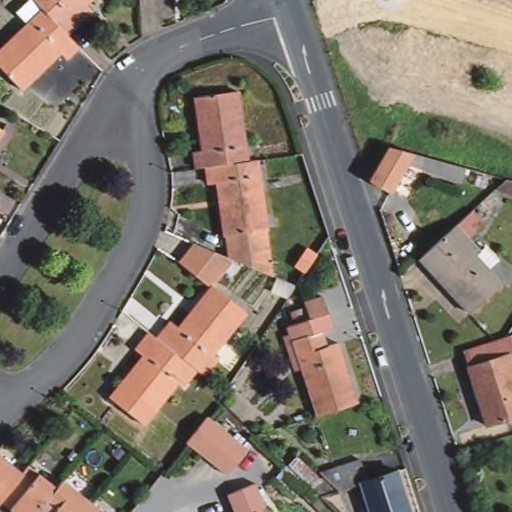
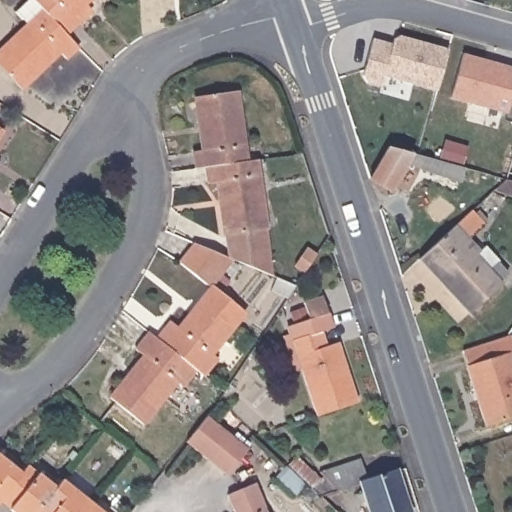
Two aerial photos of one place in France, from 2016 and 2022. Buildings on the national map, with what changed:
unchanged [(28,0),(35,0),(65,34),(76,47),(65,58),(59,52),(21,88),(0,66),(0,50),(29,23),(17,10),(28,0)]
unchanged [(72,16),(78,22),(65,34),(35,0),(89,0),(72,16)]
new [(385,74),(382,86),(366,83),(362,76),(373,39),(392,43),(393,39),(399,36),(447,48),(437,90),(385,74)]
new [(451,98),(463,54),(512,67),(512,91),(506,113),(451,98)]
unchanged [(195,147),(204,146),(199,92),(239,88),(248,158),(226,161),(206,163),(200,164),(198,164),(195,147)]
unchanged [(0,134),(0,126),(4,128),(0,134)]
unchanged [(441,163),(462,169),(458,183),(405,164),(388,192),(366,179),(386,148),(441,163)]
unchanged [(209,179),(206,163),(226,161),(248,158),(252,157),(258,157),(272,274),(229,255),(219,178),(209,179)]
unchanged [(512,181),(512,195),(496,191),(508,180),(512,181)]
unchanged [(477,215),(482,212),(488,219),(484,224),(486,225),(470,240),(480,252),(476,255),(502,284),(470,315),(420,261),(473,212),(477,215)]
unchanged [(224,262),(210,284),(177,263),(195,241),(224,262)]
unchanged [(175,326),(205,290),(210,284),(218,291),(241,311),(207,352),(214,358),(200,374),(192,367),(191,367),(155,337),(168,321),(175,326)]
unchanged [(305,318),(301,302),(320,295),(331,328),(319,331),(323,346),(335,342),(356,401),(315,414),(300,374),(298,367),(292,369),(281,337),(288,335),(285,325),(305,318)]
unchanged [(178,384),(174,380),(139,422),(106,395),(140,354),(132,347),(146,330),(155,337),(191,367),(192,367),(178,384)]
unchanged [(468,367),(463,351),(505,338),(512,336),(512,354),(510,355),(512,363),(512,417),(485,424),(467,367),(468,367)]
unchanged [(198,429),(206,418),(247,450),(228,476),(187,443),(198,429)]
unchanged [(312,488),(324,476),(320,472),(363,459),(369,479),(398,470),(412,512),(372,512),(363,485),(320,495),(312,488)]
unchanged [(0,500),(0,462),(18,476),(0,500)]
unchanged [(53,491),(37,512),(7,512),(0,506),(0,500),(18,476),(24,468),(53,491)]
unchanged [(255,483),(268,512),(236,512),(228,495),(255,483)]
unchanged [(86,506),(82,512),(37,512),(53,491),(59,484),(86,506)]
unchanged [(82,512),(86,506),(94,512),(82,512)]

